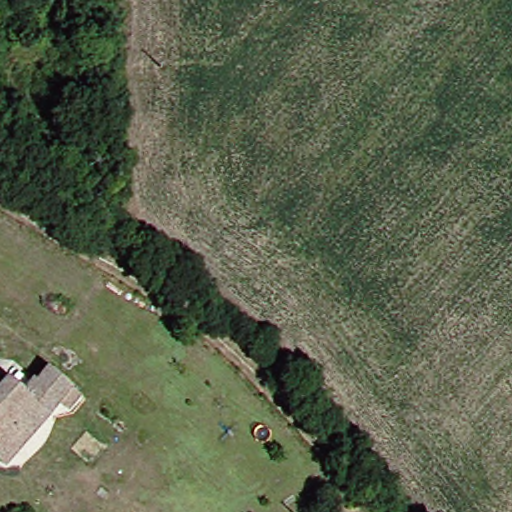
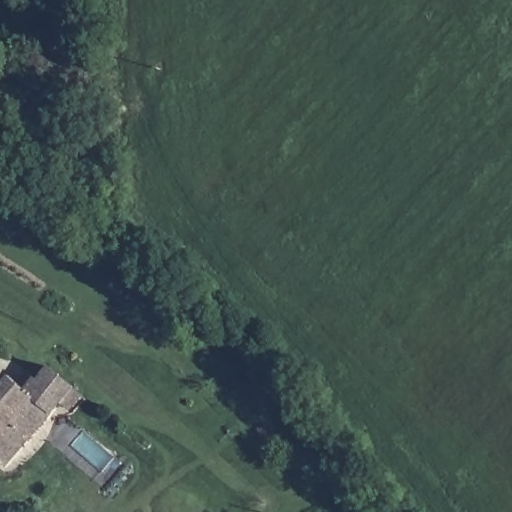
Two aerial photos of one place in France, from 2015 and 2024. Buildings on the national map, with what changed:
unchanged [(34,408),(0,448),(0,382),(3,378),(25,393),(33,383),(37,385),(48,373),(71,392),(49,418),(34,408)]
unchanged [(5,471),(0,467),(0,448),(34,408),(49,418),(5,471)]

